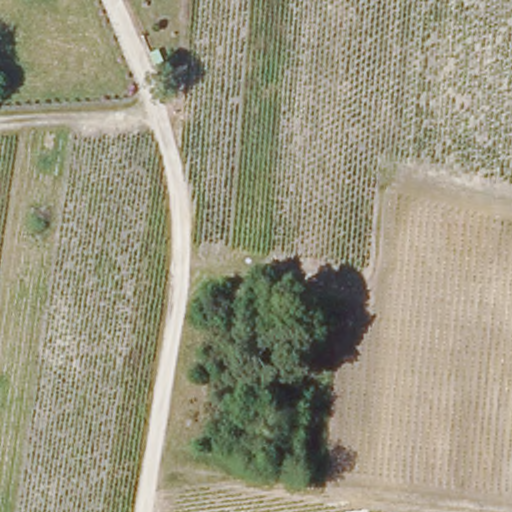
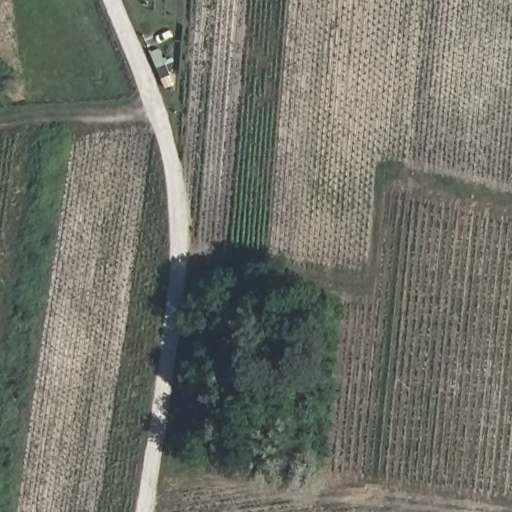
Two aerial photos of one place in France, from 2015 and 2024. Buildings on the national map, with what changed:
[]

